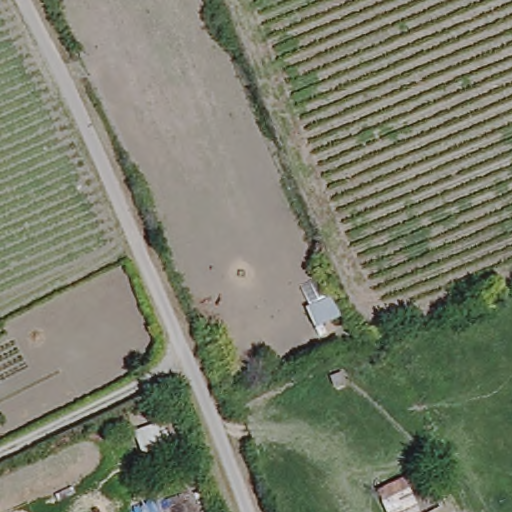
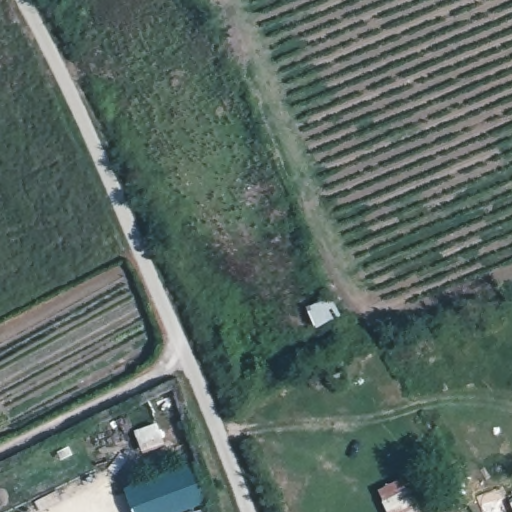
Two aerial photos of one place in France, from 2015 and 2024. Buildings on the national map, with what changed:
unchanged [(164,421),(175,444),(149,458),(134,428),(164,421)]
new [(125,487),(202,458),(217,497),(176,512),(134,512),(125,487)]
unchanged [(413,471),(433,512),(387,512),(376,488),(413,471)]

